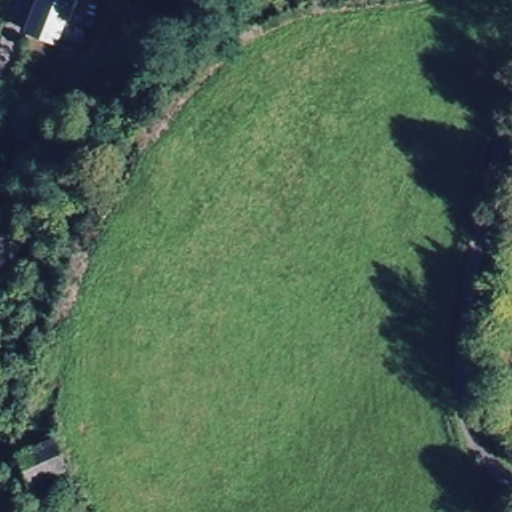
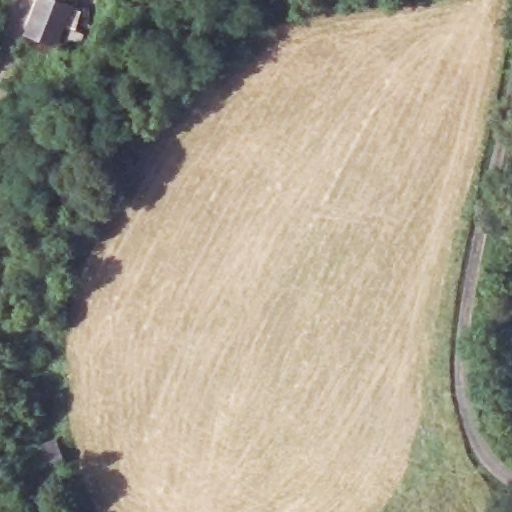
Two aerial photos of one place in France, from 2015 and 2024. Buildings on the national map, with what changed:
unchanged [(43,0),(70,0),(76,4),(70,14),(55,52),(26,37),(43,0)]
unchanged [(27,480),(15,452),(51,434),(64,464),(27,480)]

